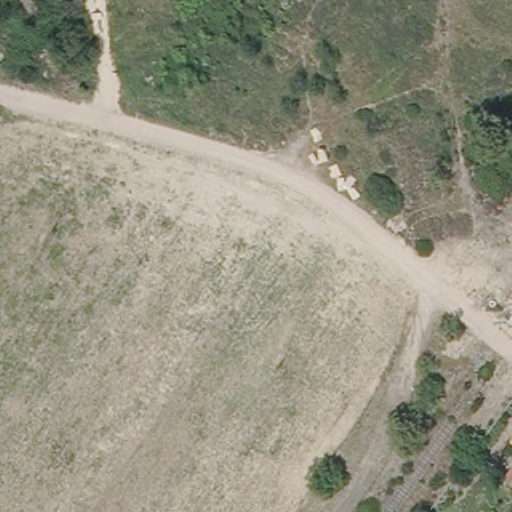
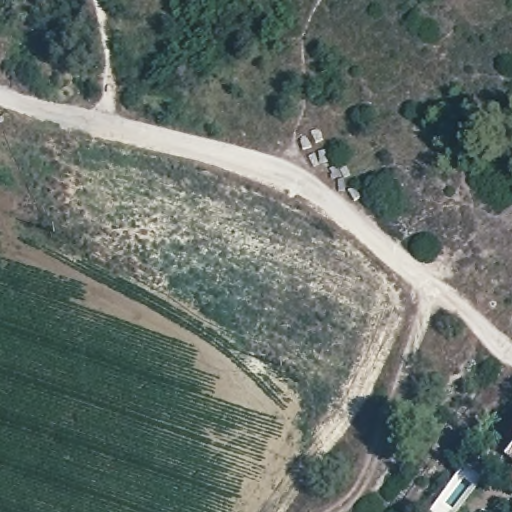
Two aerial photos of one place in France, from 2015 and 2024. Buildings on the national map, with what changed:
unchanged [(512,470),(512,480),(508,477),(512,470)]

